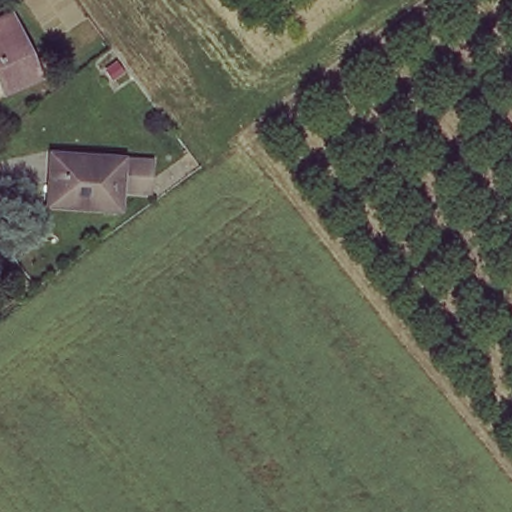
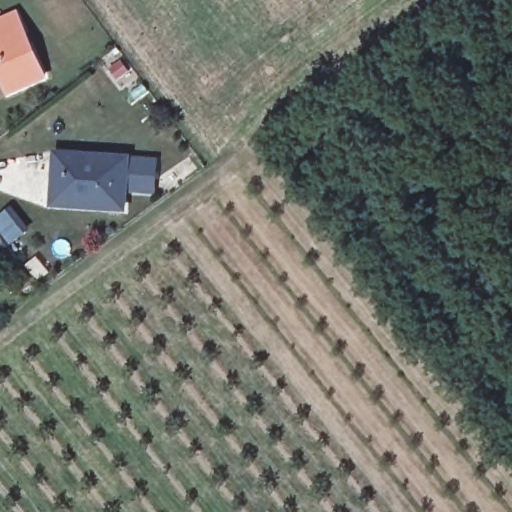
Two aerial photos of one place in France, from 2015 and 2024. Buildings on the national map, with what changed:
unchanged [(16,15),(41,78),(3,90),(0,83),(0,20),(16,15)]
unchanged [(107,205),(71,203),(49,202),(50,190),(53,150),(131,154),(129,193),(128,205),(107,205)]

